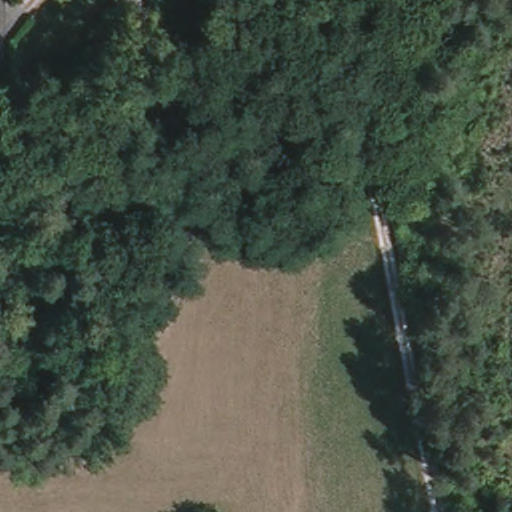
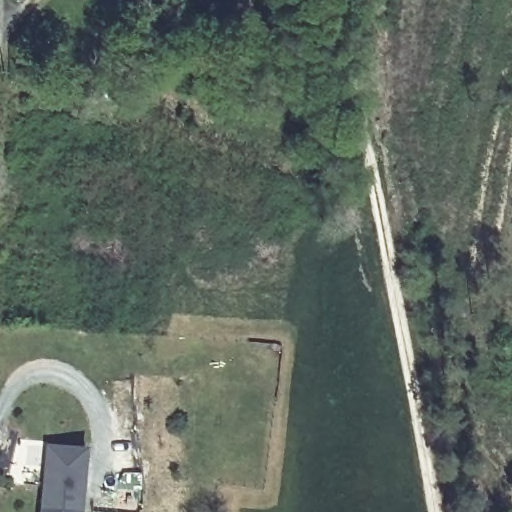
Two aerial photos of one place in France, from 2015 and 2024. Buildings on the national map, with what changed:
new [(40,512),(46,445),(88,450),(82,512),(40,512)]

